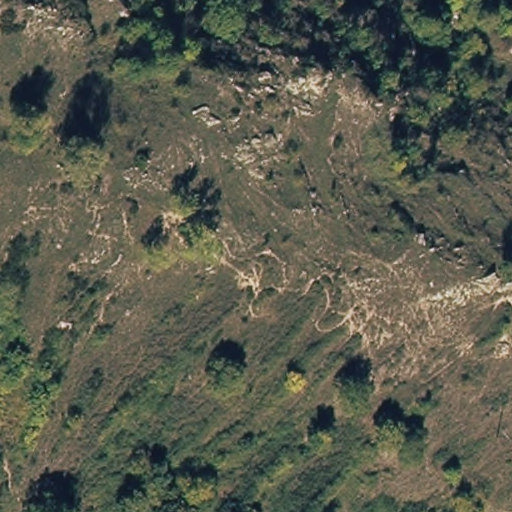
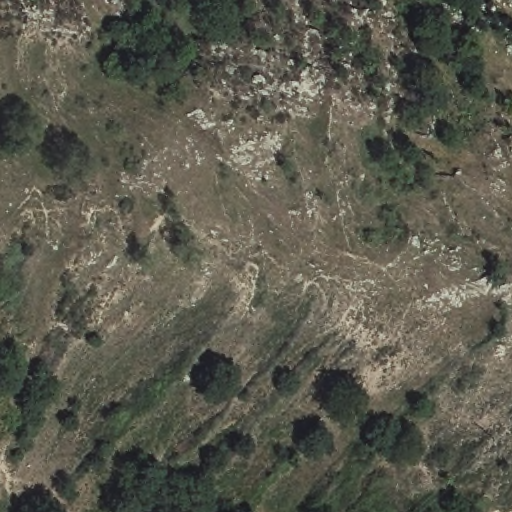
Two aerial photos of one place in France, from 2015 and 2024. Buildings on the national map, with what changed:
[]

